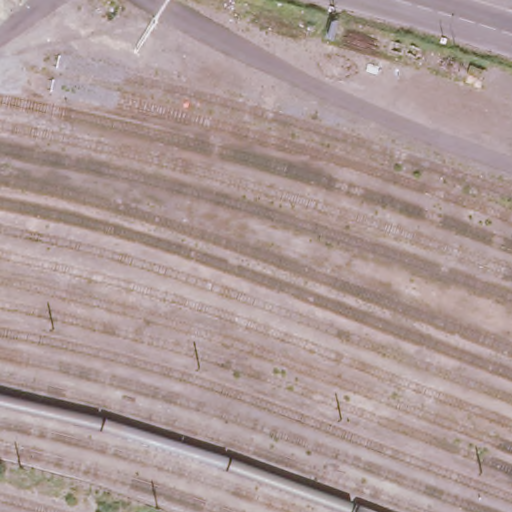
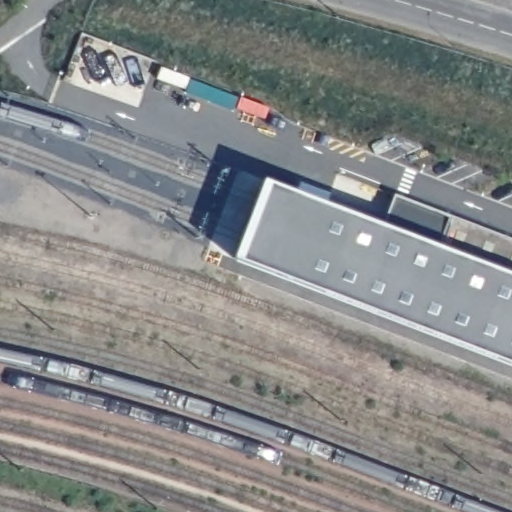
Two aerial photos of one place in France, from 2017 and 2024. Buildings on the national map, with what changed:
new [(237,262),(267,182),(512,277),(512,367),(237,262)]
new [(393,195),(512,239),(512,277),(381,226),(393,195)]

